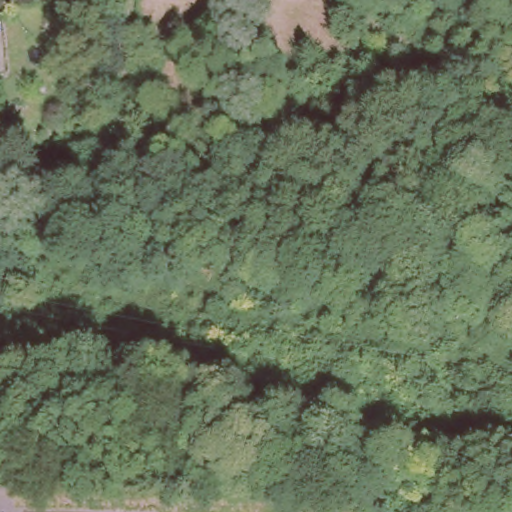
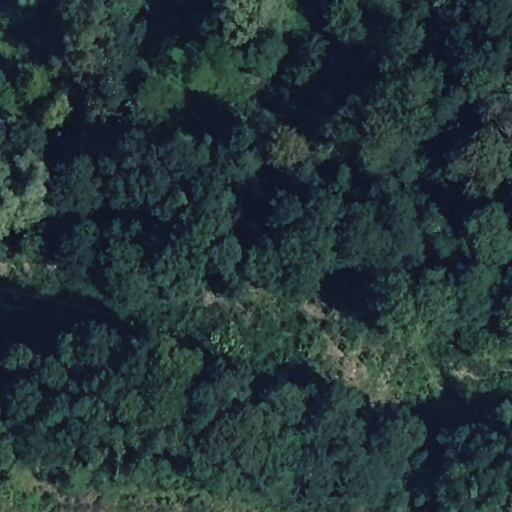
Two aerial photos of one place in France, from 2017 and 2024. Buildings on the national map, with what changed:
[]

